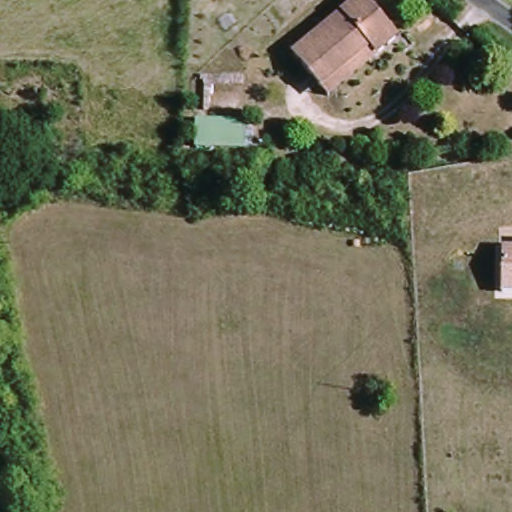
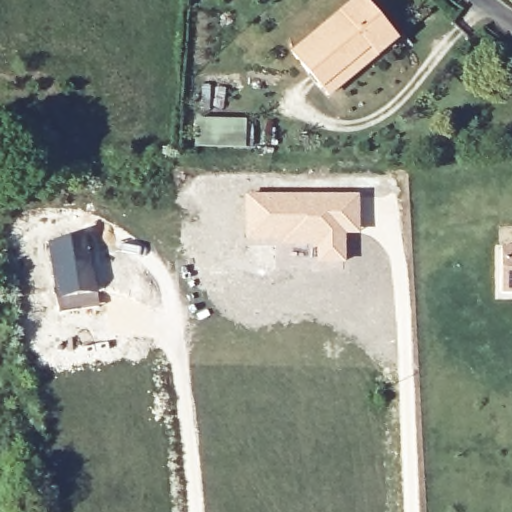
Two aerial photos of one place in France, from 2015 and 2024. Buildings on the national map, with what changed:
unchanged [(358,0),(367,0),(397,39),(376,55),(326,94),(319,85),(293,52),(358,0)]
unchanged [(242,121),(242,147),(192,147),(192,121),(242,121)]
new [(246,192),(361,193),(361,234),(346,235),(346,262),(314,262),(314,248),(245,244),(246,192)]
new [(89,231),(100,305),(60,311),(49,240),(89,231)]
unchanged [(501,276),(502,246),(512,246),(512,292),(501,292),(501,276)]

